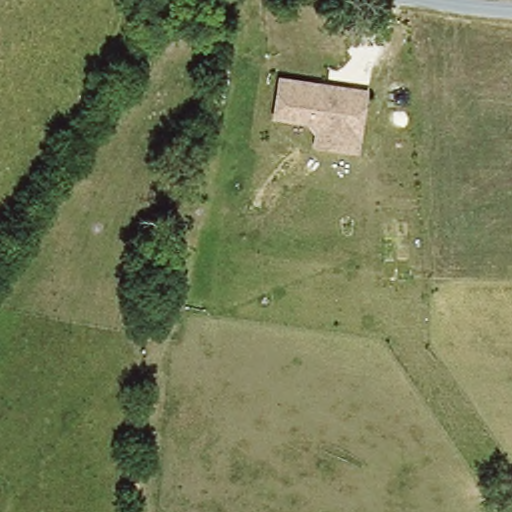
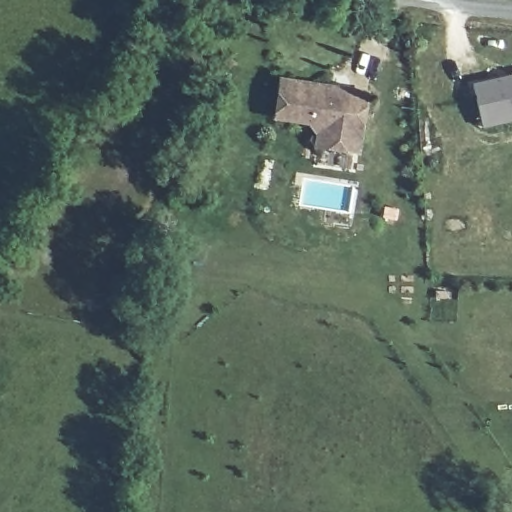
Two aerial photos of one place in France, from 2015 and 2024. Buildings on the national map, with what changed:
new [(483,127),(471,86),(512,73),(512,118),(483,127)]
unchanged [(315,132),(306,125),(271,119),(278,75),(370,89),(361,156),(313,150),(315,132)]

